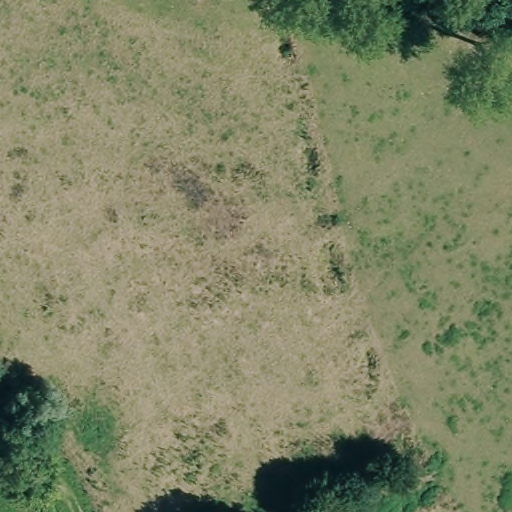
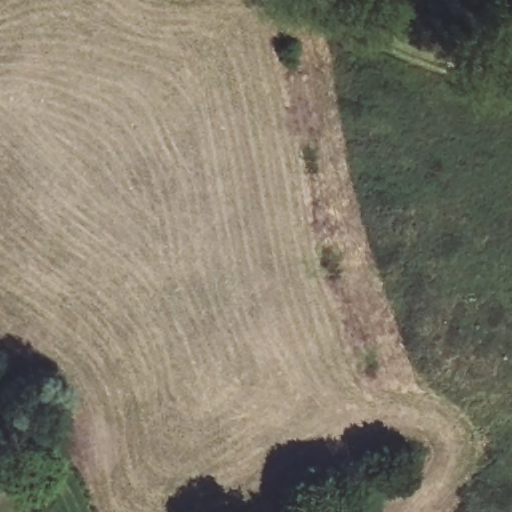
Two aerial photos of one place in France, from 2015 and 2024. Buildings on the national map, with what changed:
unchanged [(20,477),(0,481),(0,452),(3,451),(20,477)]

